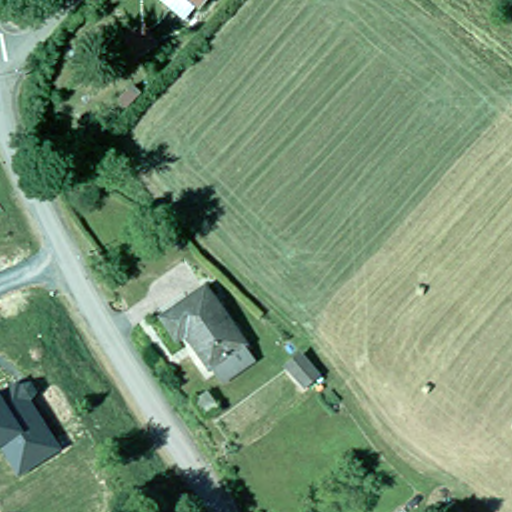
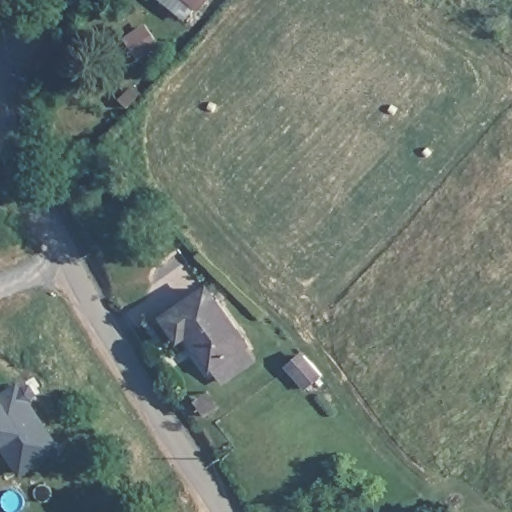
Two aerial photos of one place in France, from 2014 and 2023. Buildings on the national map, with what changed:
unchanged [(205,356),(191,338),(195,335),(183,319),(172,327),(160,307),(201,278),(238,332),(250,348),(215,372),(205,356)]
unchanged [(316,370),(299,385),(282,366),(298,353),(308,363),(316,370)]
unchanged [(20,379),(60,448),(17,474),(0,445),(0,392),(20,379)]

